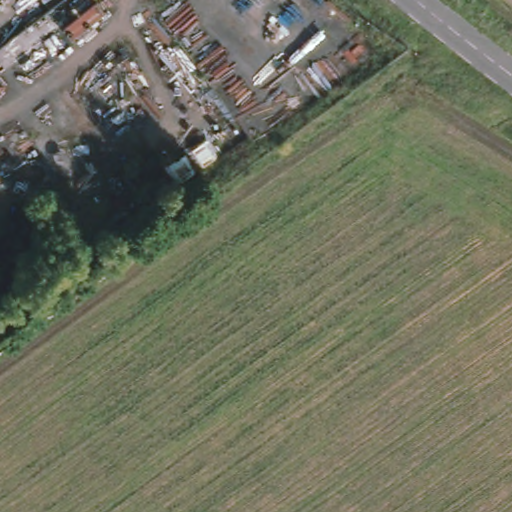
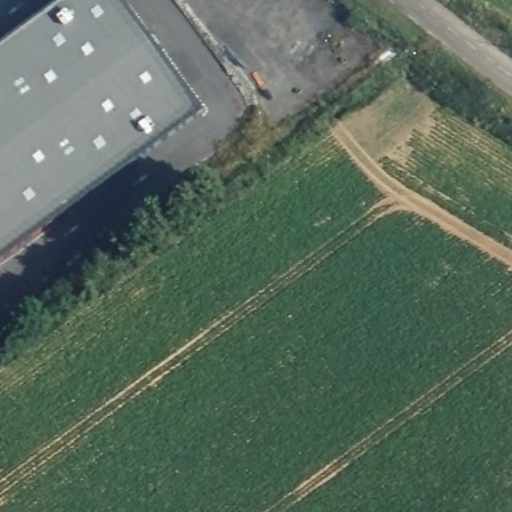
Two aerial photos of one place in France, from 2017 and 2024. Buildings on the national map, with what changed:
new [(116,0),(201,113),(0,264),(0,44),(58,0),(116,0)]

